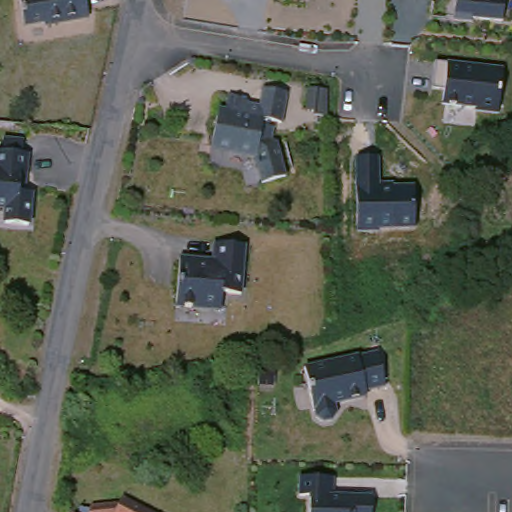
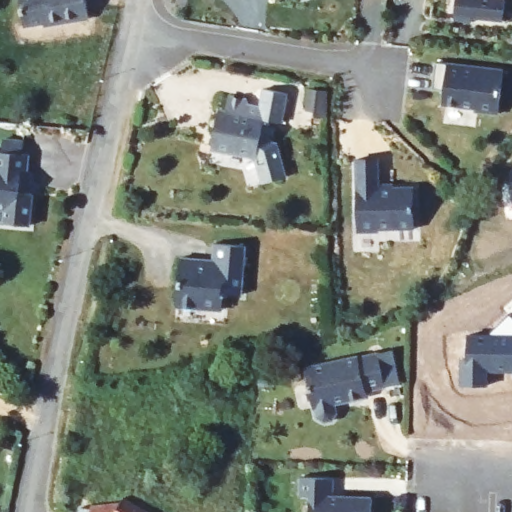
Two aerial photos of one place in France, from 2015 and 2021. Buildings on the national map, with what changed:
unchanged [(42,27),(41,24),(23,27),(17,0),(82,0),(87,19),(42,27)]
unchanged [(452,19),(455,0),(501,0),(499,24),(452,19)]
unchanged [(443,107),(444,91),(433,90),(436,62),(504,69),(501,114),(443,107)]
unchanged [(326,85),(328,85),(328,111),(309,108),(309,102),(302,101),(306,81),(326,85)]
unchanged [(290,92),(284,122),(278,122),(278,128),(282,129),(279,144),(284,145),(288,178),(263,183),(256,157),(229,154),(229,150),(212,146),(218,111),(224,112),(227,95),(245,98),(250,106),(260,107),(265,88),(290,92)]
unchanged [(24,142),(24,154),(28,154),(23,192),(31,194),(26,225),(2,221),(3,209),(0,208),(0,148),(2,139),(24,142)]
unchanged [(356,231),(353,159),(380,158),(381,186),(414,187),(414,230),(356,231)]
unchanged [(244,294),(224,292),(222,311),(179,306),(186,257),(204,258),(204,265),(217,266),(219,242),(249,246),(244,294)]
new [(461,359),(466,359),(464,340),(482,338),(506,315),(512,321),(512,368),(486,368),(487,385),(461,386),(461,359)]
unchanged [(364,390),(366,398),(333,404),(334,415),(312,421),(299,363),(372,352),(381,385),(364,390)]
unchanged [(368,512),(308,512),(308,499),(297,498),(297,476),(329,480),(331,495),(368,498),(368,512)]
unchanged [(92,505),(121,502),(123,498),(136,505),(149,512),(91,512),(92,505)]

